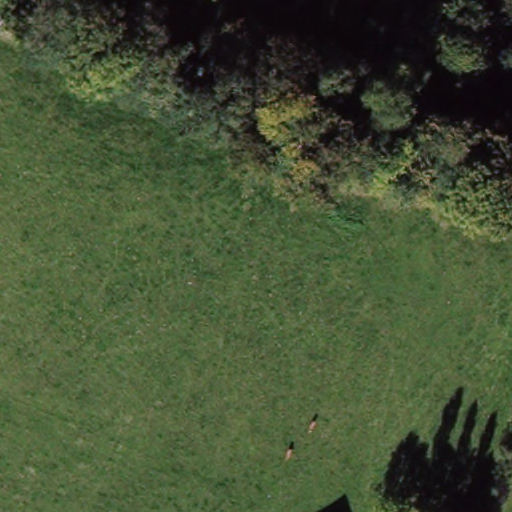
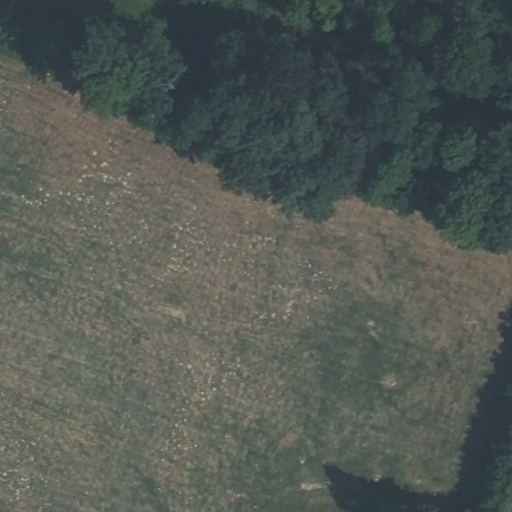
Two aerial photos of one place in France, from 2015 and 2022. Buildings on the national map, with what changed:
[]

